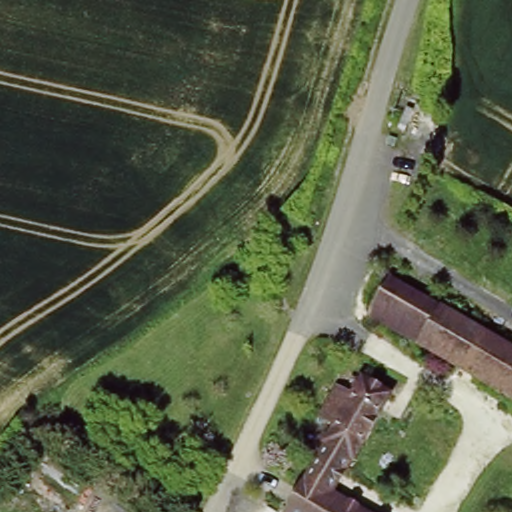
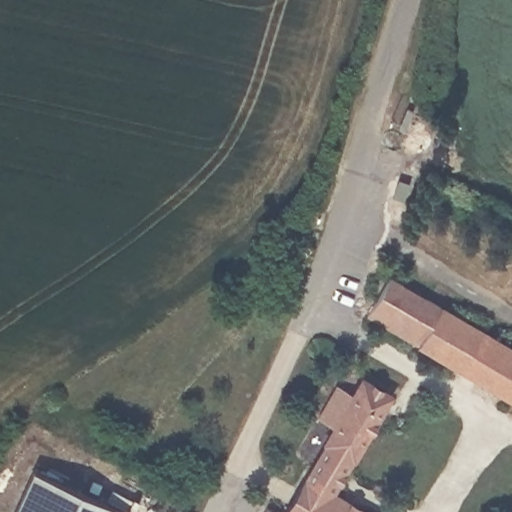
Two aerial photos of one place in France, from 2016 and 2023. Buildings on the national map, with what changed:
unchanged [(512,346),(512,400),(363,316),(389,271),(441,300),(438,305),(512,346)]
unchanged [(288,512),(336,428),(319,418),(337,387),(355,397),(364,380),(390,395),(334,493),(367,512),(288,512)]
new [(129,512),(15,512),(34,469),(129,512)]
new [(276,512),(269,512),(271,508),(276,512)]

